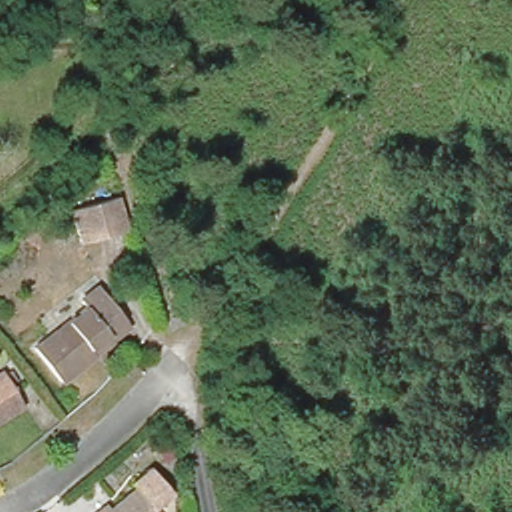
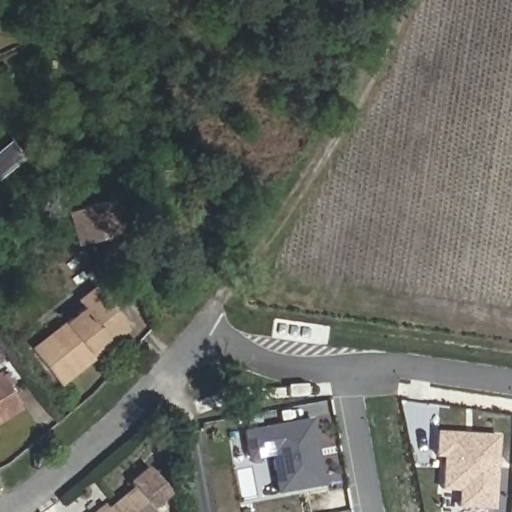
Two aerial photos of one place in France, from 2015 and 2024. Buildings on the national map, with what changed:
unchanged [(75,216),(86,211),(114,201),(125,232),(97,243),(87,247),(75,216)]
unchanged [(94,358),(61,386),(33,356),(83,310),(77,303),(95,286),(122,318),(129,326),(94,358)]
unchanged [(0,419),(0,388),(12,413),(0,419)]
new [(312,420),(324,485),(278,494),(271,456),(249,460),(245,432),(312,420)]
new [(436,433),(496,437),(491,509),(457,507),(458,491),(440,489),(442,458),(433,457),(436,433)]
unchanged [(107,512),(134,489),(153,512),(107,512)]

